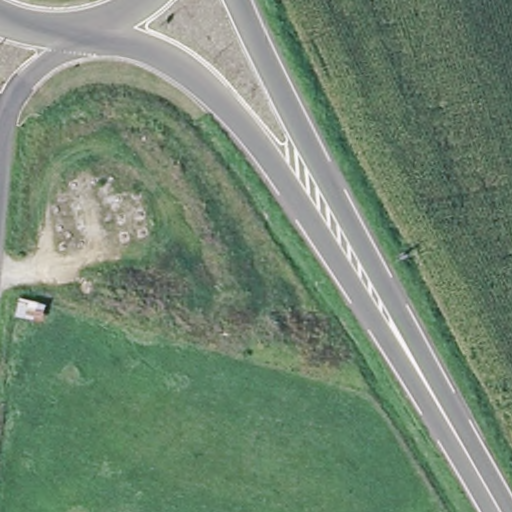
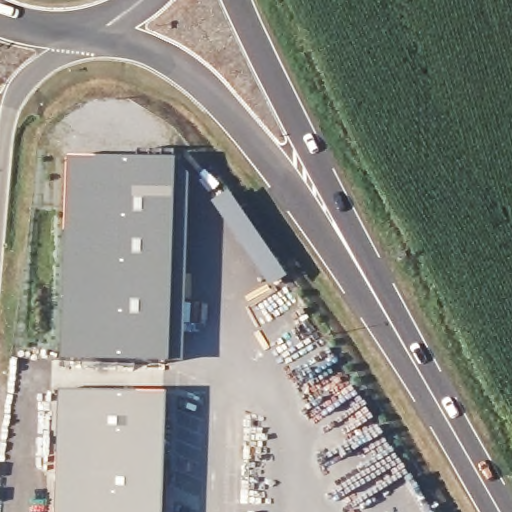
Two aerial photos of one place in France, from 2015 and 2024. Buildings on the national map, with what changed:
new [(166,366),(59,361),(68,158),(174,161),(166,366)]
new [(209,204),(223,194),(282,278),(268,288),(209,204)]
demolished [(41,301),(36,324),(14,320),(20,295),(41,301)]
new [(160,512),(53,512),(58,391),(164,395),(160,512)]

